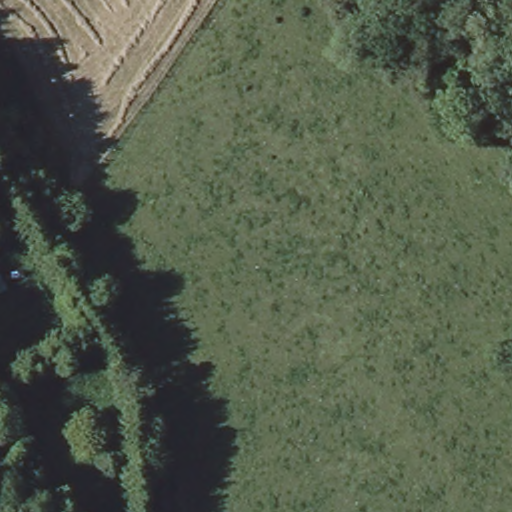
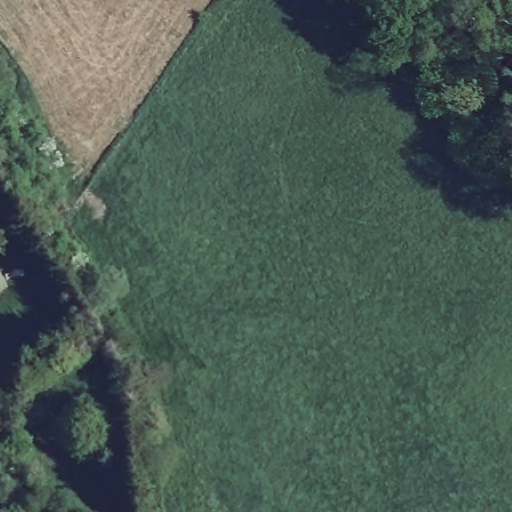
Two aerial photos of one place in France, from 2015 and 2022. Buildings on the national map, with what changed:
unchanged [(0,293),(0,276),(7,290),(0,293)]

